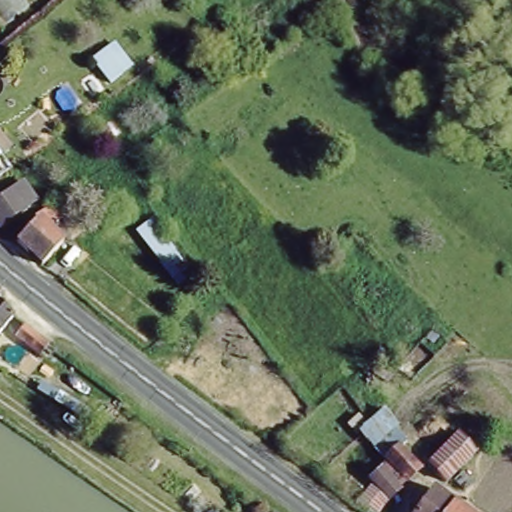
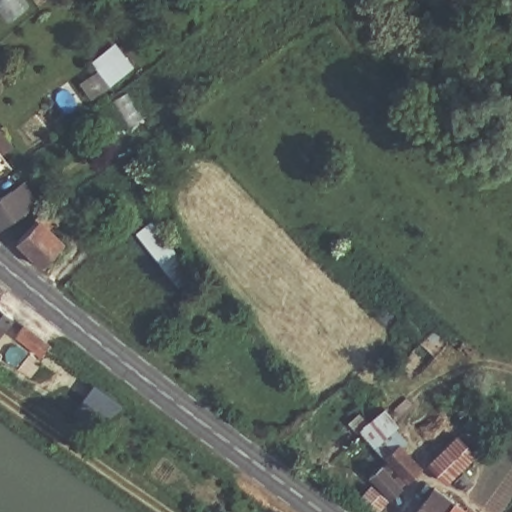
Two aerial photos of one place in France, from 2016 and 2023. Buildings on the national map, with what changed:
unchanged [(133,68),(108,87),(86,62),(117,42),(133,68)]
unchanged [(8,191),(22,213),(0,227),(0,197),(8,191)]
unchanged [(40,268),(13,247),(33,222),(29,219),(44,206),(56,216),(45,230),(60,245),(40,268)]
unchanged [(195,273),(179,286),(132,233),(150,220),(195,273)]
unchanged [(15,319),(0,335),(0,308),(15,319)]
unchanged [(43,361),(14,340),(25,325),(54,346),(43,361)]
unchanged [(375,446),(398,426),(408,441),(400,447),(420,471),(405,482),(375,446)]
unchanged [(452,433),(471,452),(443,482),(424,464),(452,433)]
unchanged [(460,491),(455,487),(451,484),(458,474),(462,478),(467,481),(460,491)]
unchanged [(435,486),(452,500),(466,512),(416,512),(435,486)]

